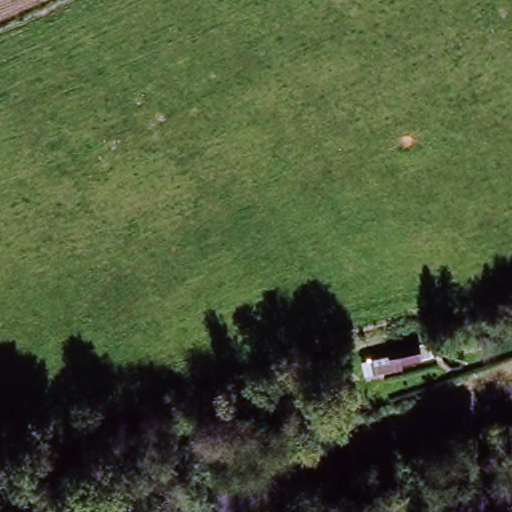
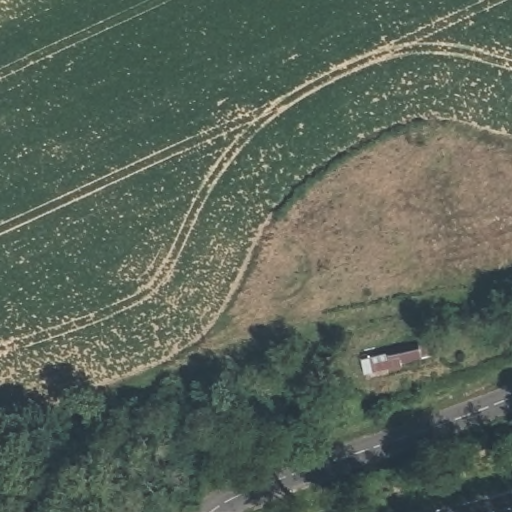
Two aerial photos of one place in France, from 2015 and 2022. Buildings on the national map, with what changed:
unchanged [(423,359),(394,366),(389,344),(418,336),(423,359)]

